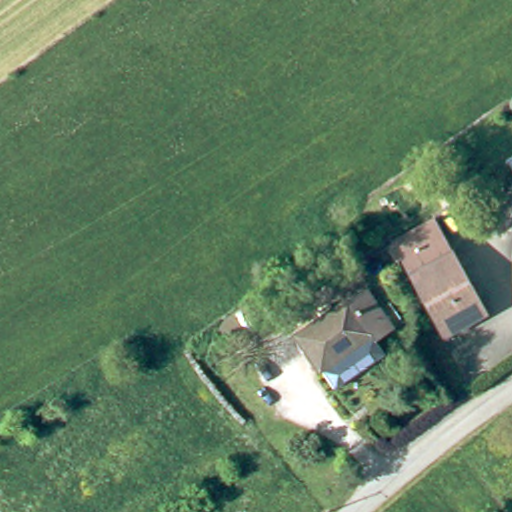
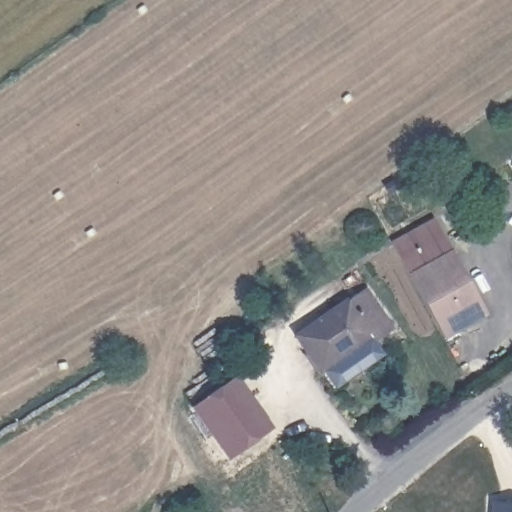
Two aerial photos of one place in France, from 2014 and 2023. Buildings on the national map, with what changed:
unchanged [(410,274),(394,240),(435,218),(455,250),(410,274)]
unchanged [(491,311),(446,337),(410,274),(455,250),(491,311)]
unchanged [(399,323),(382,334),(392,351),(340,385),(303,330),(373,283),(399,323)]
new [(237,374),(273,426),(228,459),(191,405),(237,374)]
new [(512,502),(512,512),(490,512),(491,500),(512,502)]

